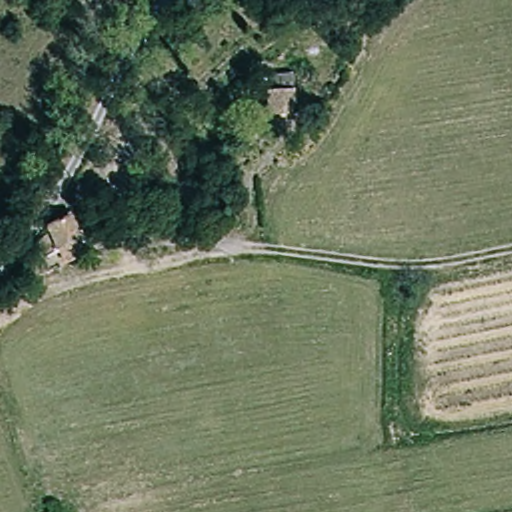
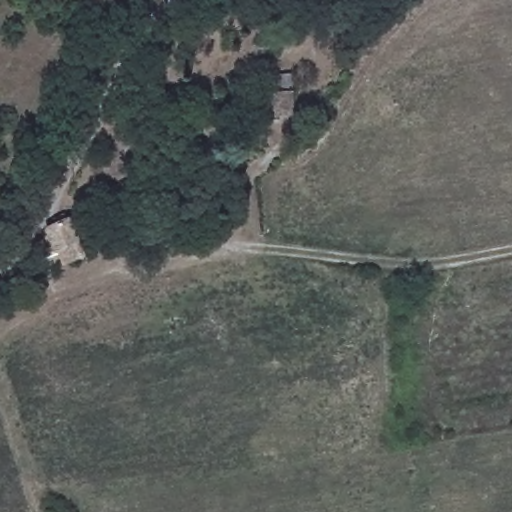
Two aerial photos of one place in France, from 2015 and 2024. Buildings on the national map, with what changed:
unchanged [(271,100),(270,81),(296,81),(295,101),(271,100)]
unchanged [(68,261),(64,251),(47,255),(44,244),(60,238),(55,226),(79,218),(89,244),(92,254),(68,261)]

